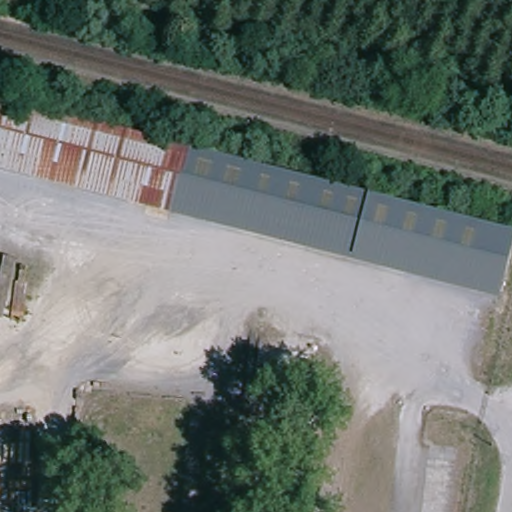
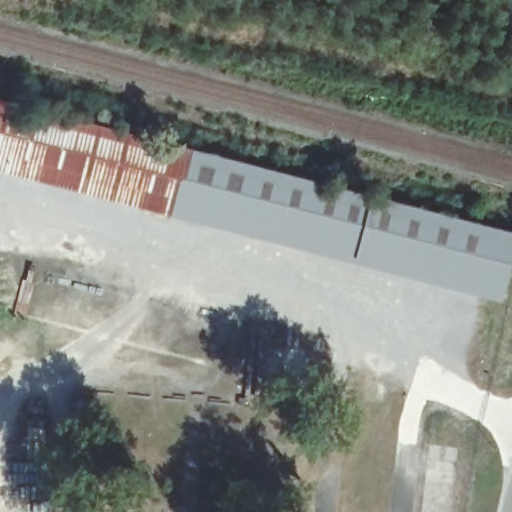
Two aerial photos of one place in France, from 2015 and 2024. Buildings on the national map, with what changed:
unchanged [(0,103),(512,231),(512,247),(502,289),(0,167),(0,103)]

